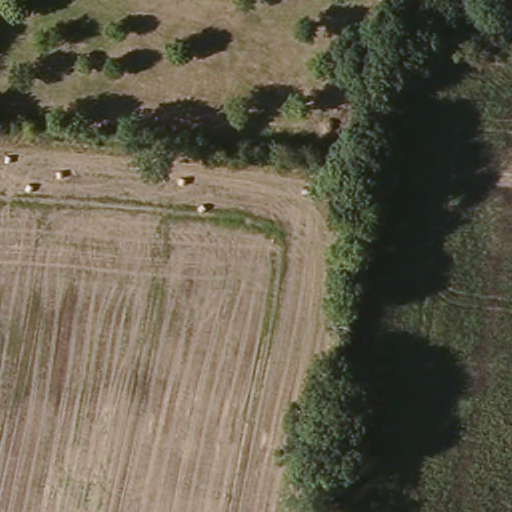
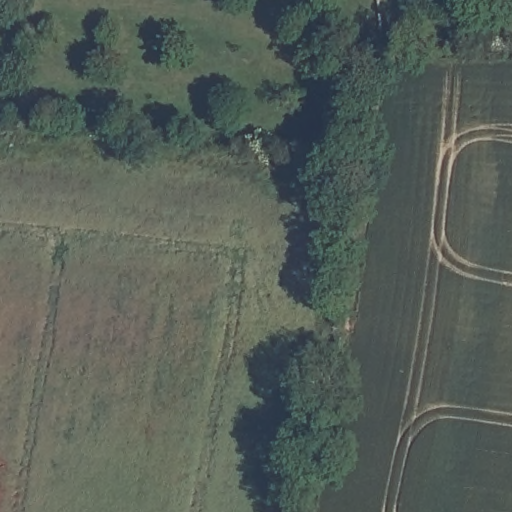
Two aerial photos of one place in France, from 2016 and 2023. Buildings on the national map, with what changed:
[]

